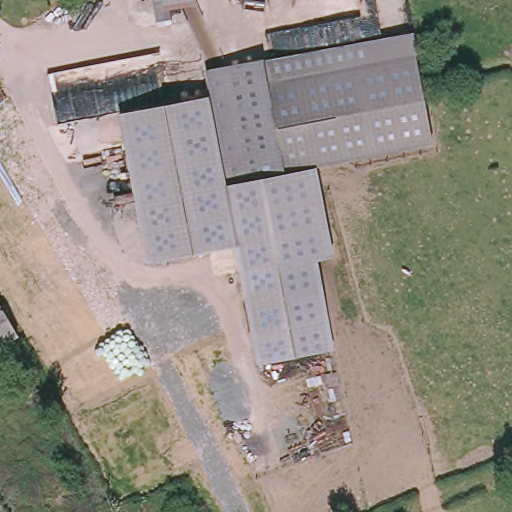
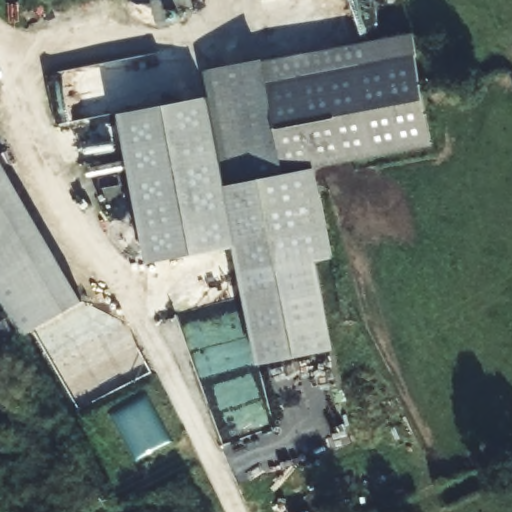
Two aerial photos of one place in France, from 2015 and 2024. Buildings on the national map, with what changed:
unchanged [(163,0),(179,0),(164,4),(163,0)]
unchanged [(407,34),(420,95),(430,143),(312,166),(283,172),(286,190),(229,199),(209,100),(204,73),(400,35),(407,34)]
unchanged [(319,261),(338,349),(264,365),(239,247),(158,264),(150,266),(142,230),(140,218),(119,118),(207,99),(229,199),(286,190),(283,172),(312,166),(329,228),(335,257),(319,261)]
new [(25,337),(0,294),(0,156),(85,301),(25,337)]
unchanged [(0,348),(0,311),(15,339),(0,348)]

